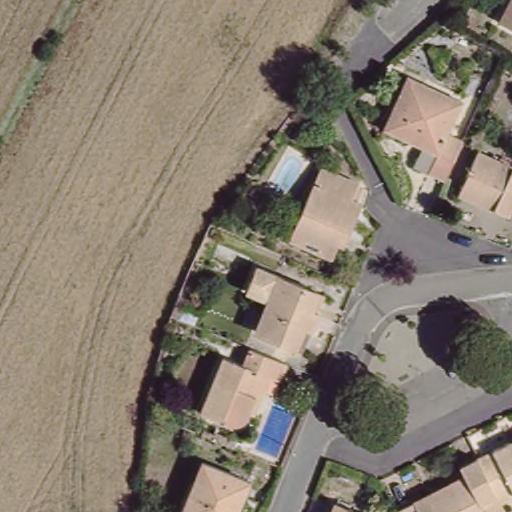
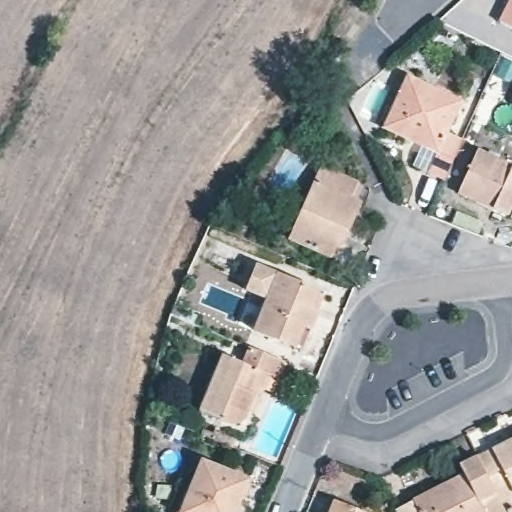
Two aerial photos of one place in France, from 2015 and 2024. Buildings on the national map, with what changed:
unchanged [(500,22),(512,0),(512,29),(500,22)]
unchanged [(454,100),(445,121),(464,130),(440,181),(419,172),(428,154),(378,129),(405,77),(454,100)]
unchanged [(473,147),(512,165),(512,183),(498,216),(451,195),(473,147)]
unchanged [(354,181),(347,202),(358,210),(343,242),(331,237),(323,253),(285,237),(317,165),(354,181)]
unchanged [(302,300),(297,309),(310,314),(292,357),(243,337),(264,284),(302,300)]
unchanged [(257,366),(263,352),(297,366),(291,380),(281,377),(260,427),(240,419),(217,407),(237,360),(257,366)]
unchanged [(473,448),(475,452),(491,445),(512,433),(512,485),(494,495),(475,504),(478,512),(397,512),(393,502),(408,495),(460,471),(455,458),(473,448)]
unchanged [(196,457),(248,477),(234,512),(174,512),(196,457)]
unchanged [(331,502),(353,512),(326,512),(331,502)]

